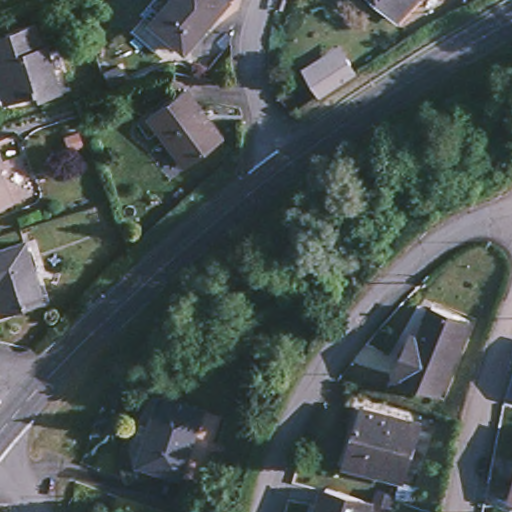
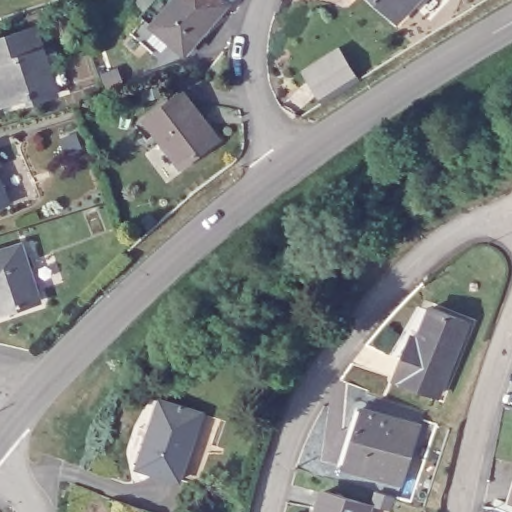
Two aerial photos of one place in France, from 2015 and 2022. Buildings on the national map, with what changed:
unchanged [(200,24),(180,46),(147,18),(163,0),(224,0),(204,24),(200,24)]
unchanged [(377,0),(410,0),(396,16),(377,0)]
unchanged [(55,89),(32,95),(30,89),(0,98),(0,96),(0,31),(35,21),(55,89)]
unchanged [(304,69),(341,46),(359,73),(322,97),(304,69)]
unchanged [(215,133),(177,160),(147,119),(185,91),(215,133)]
unchanged [(0,200),(0,181),(7,197),(0,200)]
unchanged [(37,296),(0,308),(0,245),(20,239),(37,296)]
unchanged [(412,329),(419,332),(430,303),(465,316),(437,389),(395,373),(412,329)]
unchanged [(199,408),(179,469),(140,457),(160,395),(199,408)]
unchanged [(360,406),(418,421),(403,480),(345,466),(360,406)]
unchanged [(320,489),(366,504),(363,512),(314,512),(320,489)]

